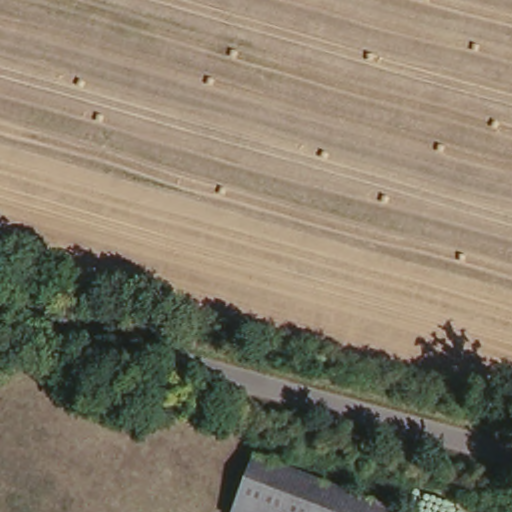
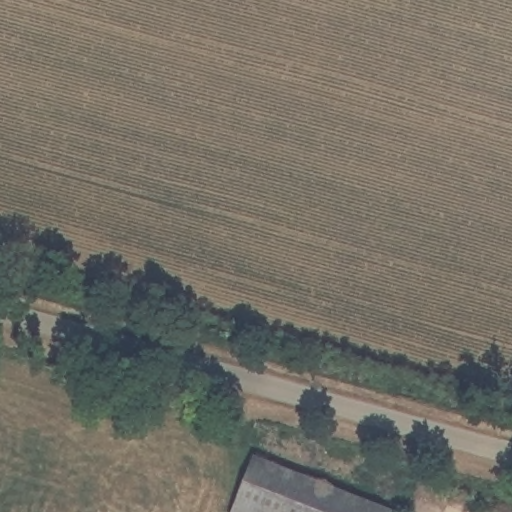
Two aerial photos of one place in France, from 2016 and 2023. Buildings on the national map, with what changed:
unchanged [(254,462),(381,512),(235,512),(254,462)]

